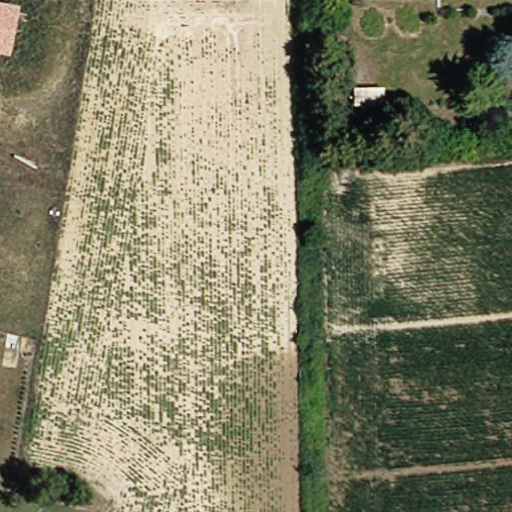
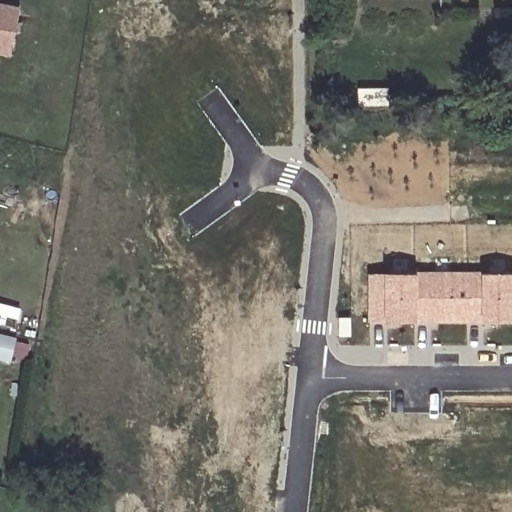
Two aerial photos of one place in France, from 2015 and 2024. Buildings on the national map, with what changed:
unchanged [(8,57),(0,56),(0,3),(19,7),(8,57)]
new [(417,274),(417,271),(481,271),(481,274),(512,274),(512,322),(482,322),(415,322),(384,323),(367,322),(368,275),(383,273),(417,274)]

